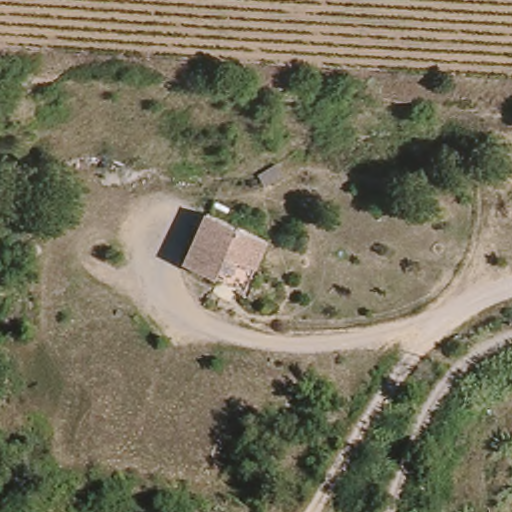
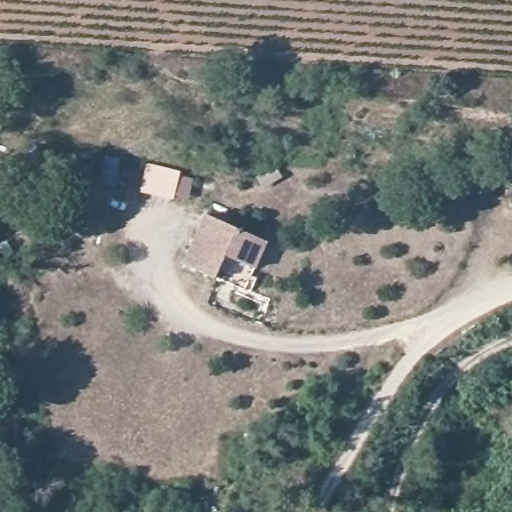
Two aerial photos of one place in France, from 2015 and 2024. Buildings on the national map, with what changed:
new [(146,163),(180,170),(175,200),(140,193),(146,163)]
unchanged [(257,271),(245,288),(222,277),(182,261),(204,212),(270,241),(257,271)]

